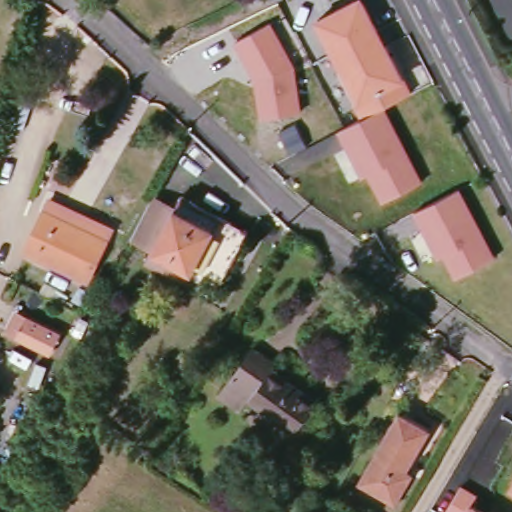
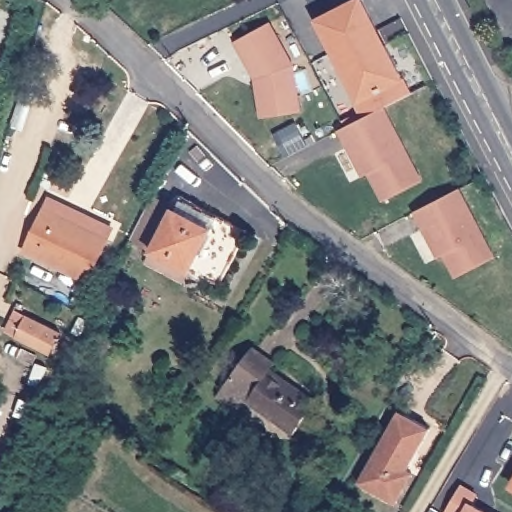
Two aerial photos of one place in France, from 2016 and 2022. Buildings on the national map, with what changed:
unchanged [(362,0),(365,0),(413,95),(387,112),(362,126),(317,22),(362,0)]
unchanged [(273,23),(298,67),(303,112),(262,117),(256,81),(235,43),(273,23)]
unchanged [(360,168),(343,137),(387,112),(424,180),(387,201),(374,179),(368,182),(360,168)]
unchanged [(433,246),(416,215),(459,190),(497,258),(460,279),(447,257),(441,260),(433,246)]
unchanged [(152,261),(158,249),(137,238),(158,197),(180,209),(186,196),(253,232),(224,285),(208,277),(205,282),(191,275),(188,280),(152,261)]
unchanged [(25,251),(45,211),(51,200),(112,231),(107,242),(88,282),(25,251)]
unchanged [(48,355),(16,339),(28,316),(59,333),(48,355)]
unchanged [(225,396),(233,386),(259,350),(280,365),(277,370),(322,403),(300,435),(254,401),(246,412),(225,396)]
unchanged [(407,471),(412,474),(395,504),(359,483),(400,412),(430,430),(407,471)]
unchanged [(463,485),(481,495),(473,503),(487,512),(448,512),(463,485)]

